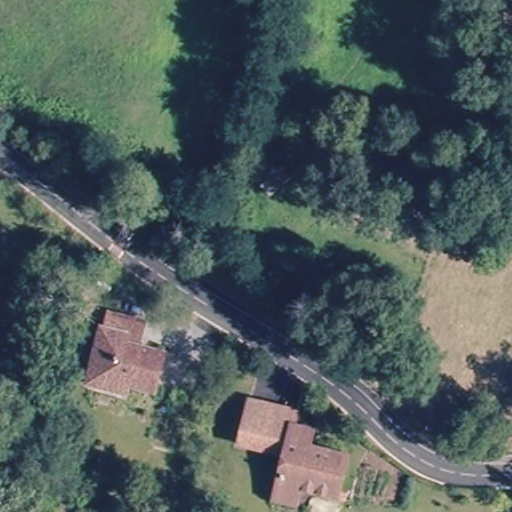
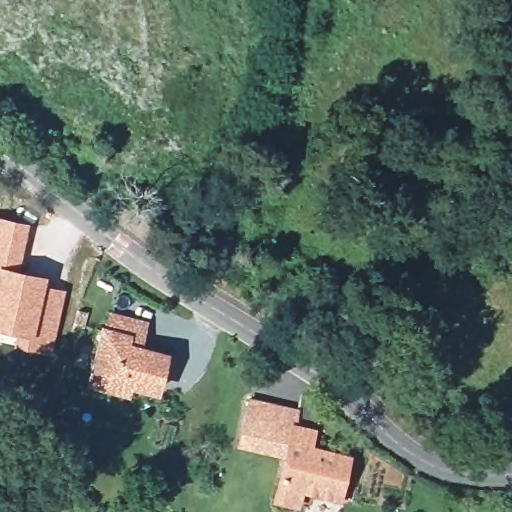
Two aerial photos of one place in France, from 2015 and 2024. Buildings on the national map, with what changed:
new [(19,268),(47,275),(45,283),(66,289),(51,355),(13,346),(15,332),(0,329),(0,216),(29,222),(19,268)]
unchanged [(86,379),(103,326),(106,327),(111,311),(148,323),(139,348),(164,357),(159,374),(154,391),(143,387),(129,383),(126,392),(110,387),(86,379)]
unchanged [(293,415),(287,435),(285,441),(281,457),(235,447),(246,403),(293,415)]
unchanged [(273,500),(278,476),(285,441),(287,435),(307,440),(305,446),(321,450),(346,456),(335,496),(293,486),(289,503),(273,500)]

